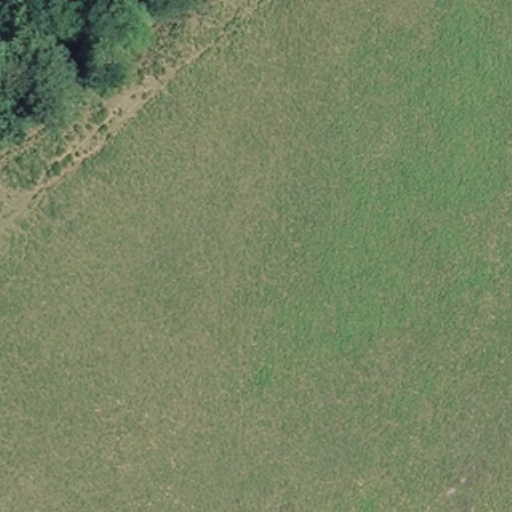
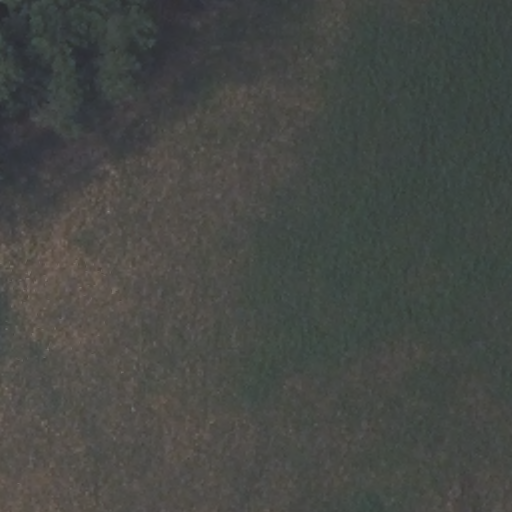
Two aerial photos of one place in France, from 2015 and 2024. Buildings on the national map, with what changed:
[]

